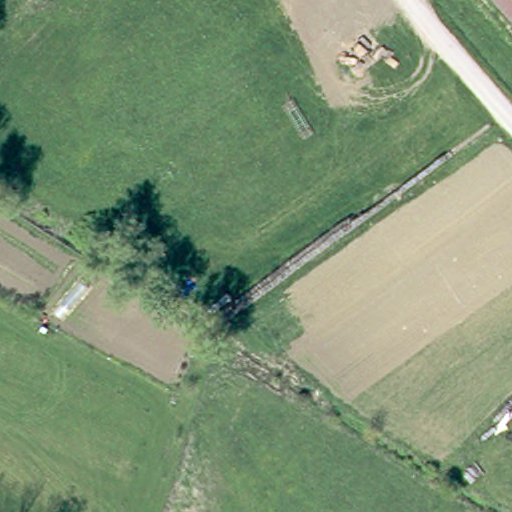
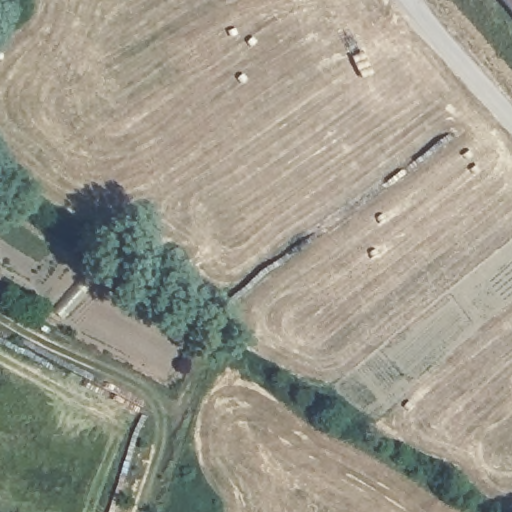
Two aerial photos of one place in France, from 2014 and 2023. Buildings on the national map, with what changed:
unchanged [(497,0),(512,0),(512,17),(497,0)]

